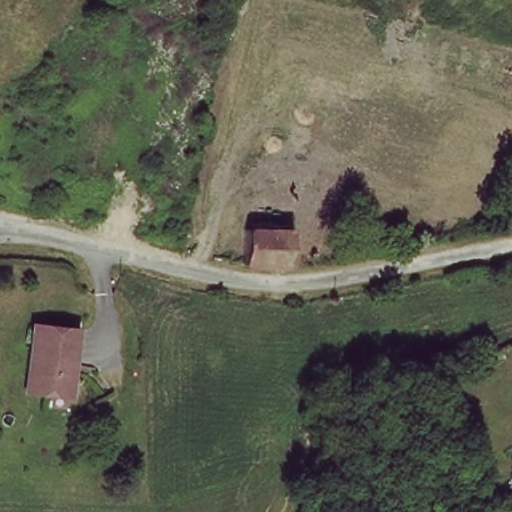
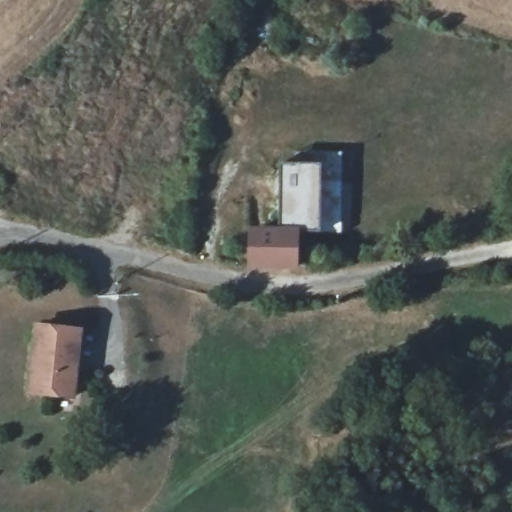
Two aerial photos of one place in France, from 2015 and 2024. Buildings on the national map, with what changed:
new [(255,227),(279,227),(281,164),(297,163),(296,152),(342,153),(341,231),(320,231),(299,231),(299,235),(255,232),(255,227)]
unchanged [(252,269),(255,232),(299,235),(298,269),(252,269)]
unchanged [(32,393),(40,326),(83,331),(75,398),(32,393)]

